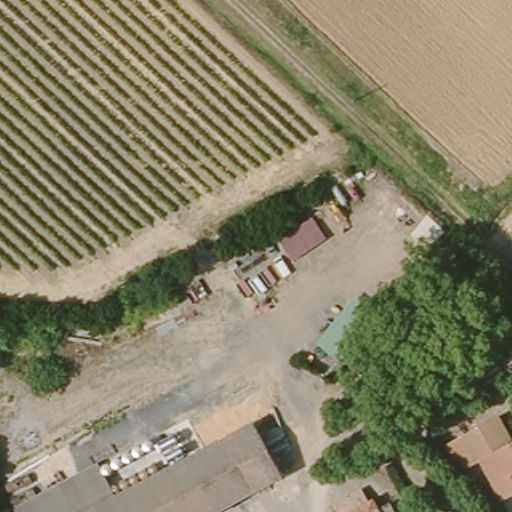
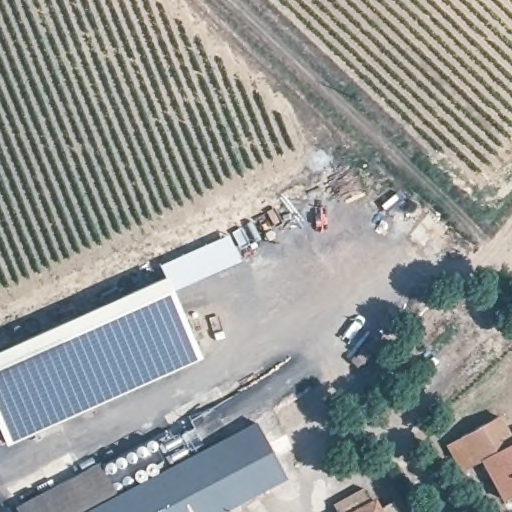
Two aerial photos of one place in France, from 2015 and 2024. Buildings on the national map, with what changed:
new [(7,445),(0,431),(0,349),(165,275),(202,358),(7,445)]
unchanged [(221,432),(237,425),(227,409),(236,404),(245,400),(285,470),(205,512),(71,512),(221,432)]
unchanged [(207,401),(221,432),(71,512),(27,512),(20,499),(113,450),(207,401)]
unchanged [(500,404),(512,424),(512,497),(505,501),(458,432),(500,404)]
unchanged [(372,493),(383,512),(339,512),(338,511),(372,493)]

